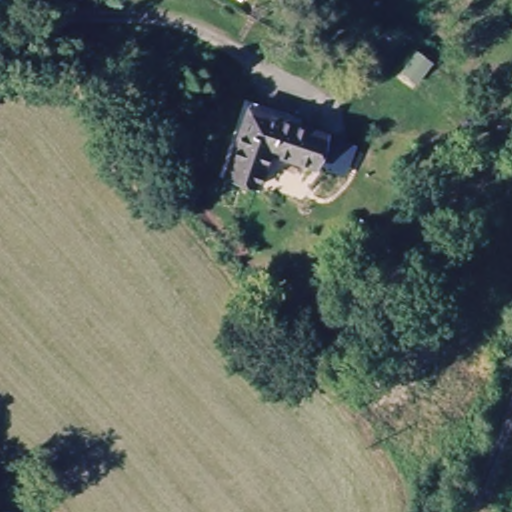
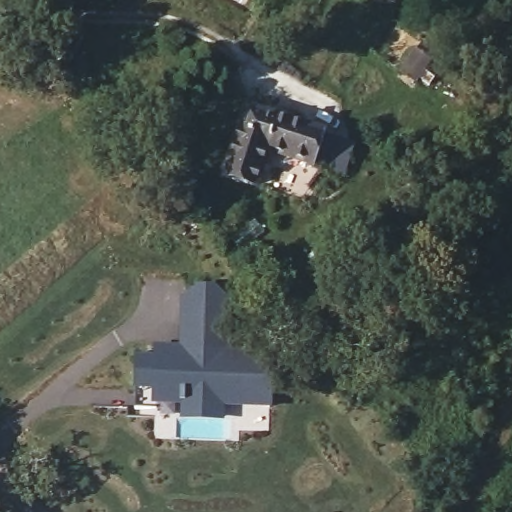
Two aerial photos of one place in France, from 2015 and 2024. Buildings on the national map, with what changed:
unchanged [(266,149),(251,184),(218,171),(246,104),(317,133),(305,164),(266,149)]
unchanged [(347,146),(336,179),(305,164),(317,133),(347,146)]
new [(186,301),(199,291),(216,291),(229,303),(228,323),(186,321),(186,301)]
new [(157,412),(136,411),(137,361),(158,362),(159,353),(185,354),(186,321),(228,323),(227,355),(273,356),(271,408),(222,407),(222,422),(186,421),(187,406),(158,405),(157,412)]

